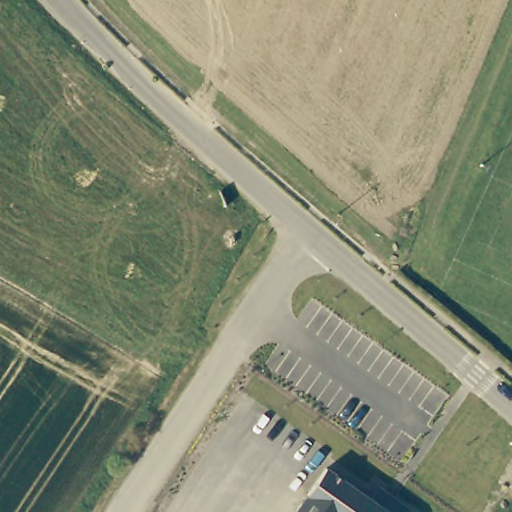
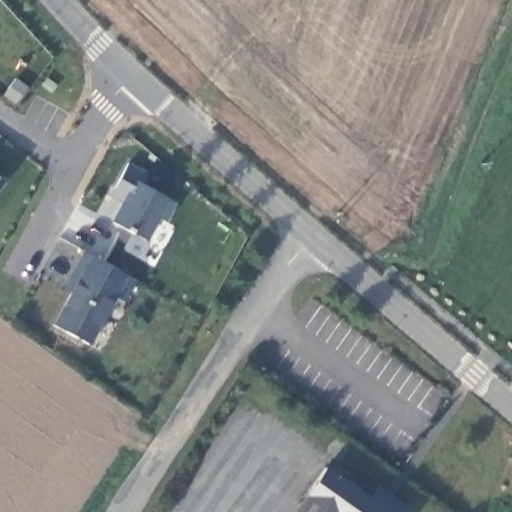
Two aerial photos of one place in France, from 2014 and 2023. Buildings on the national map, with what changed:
new [(152,175),(145,187),(177,204),(166,223),(161,219),(147,242),(111,222),(122,201),(111,195),(128,162),(152,175)]
new [(0,186),(0,177),(4,180),(0,186)]
new [(69,294),(61,290),(85,250),(129,276),(88,346),(50,325),(69,294)]
unchanged [(367,494),(374,484),(412,512),(294,512),(325,467),(367,494)]

